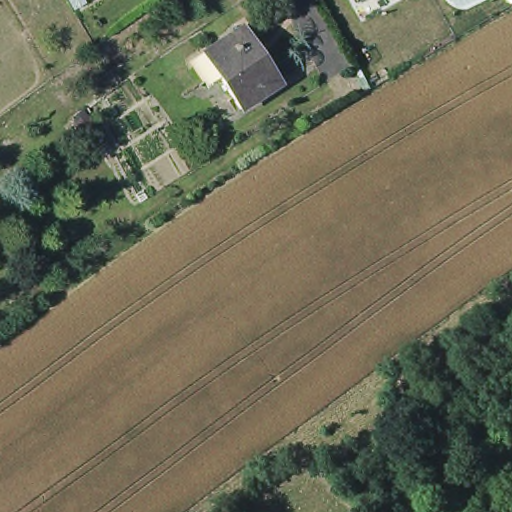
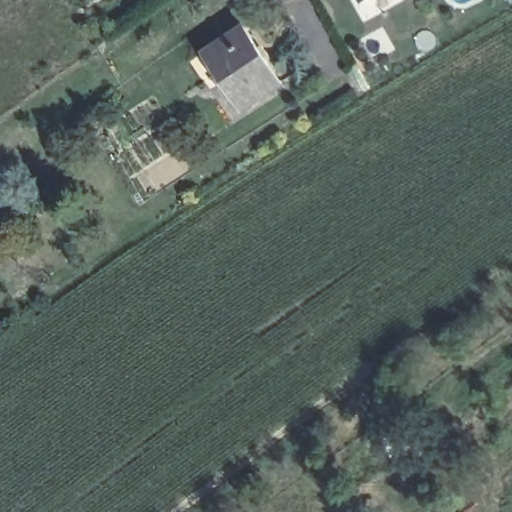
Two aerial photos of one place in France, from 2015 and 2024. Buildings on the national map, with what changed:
unchanged [(364,2),(363,0),(368,0),(364,2)]
unchanged [(196,55),(212,44),(249,19),(289,74),(251,99),(226,65),(210,75),(196,55)]

